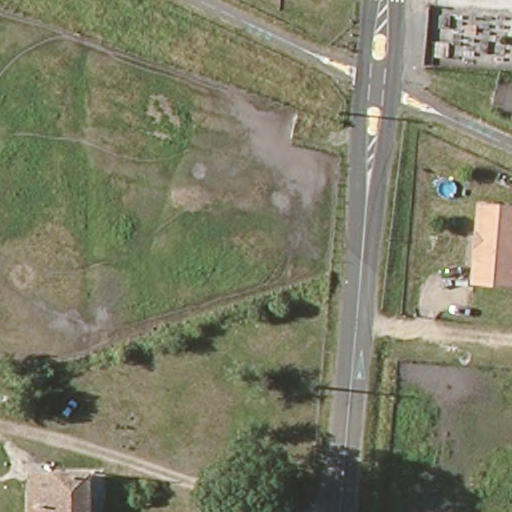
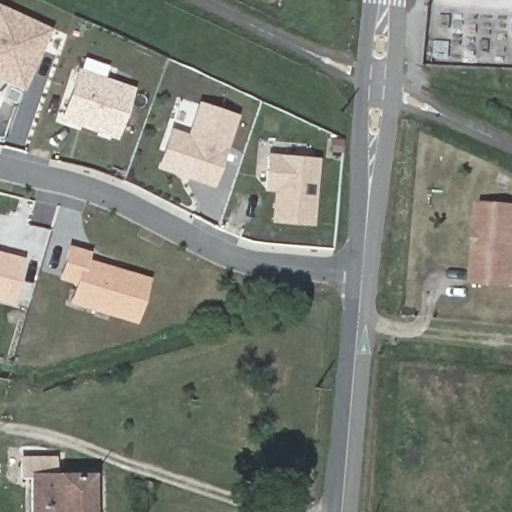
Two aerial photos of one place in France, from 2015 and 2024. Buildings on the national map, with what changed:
new [(20,91),(0,81),(0,5),(48,28),(20,91)]
new [(133,87),(113,141),(54,120),(72,67),(133,87)]
new [(236,115),(209,189),(150,167),(164,126),(183,132),(194,101),(236,115)]
new [(316,157),(311,225),(265,222),(267,190),(259,190),(261,152),(316,157)]
unchanged [(479,206),(512,207),(512,272),(511,283),(511,285),(471,282),(472,280),(479,206)]
new [(87,251),(86,258),(146,277),(133,322),(66,305),(71,284),(54,278),(64,245),(87,251)]
new [(7,303),(0,302),(0,252),(18,257),(7,303)]
unchanged [(30,475),(87,475),(89,512),(31,512),(30,475)]

